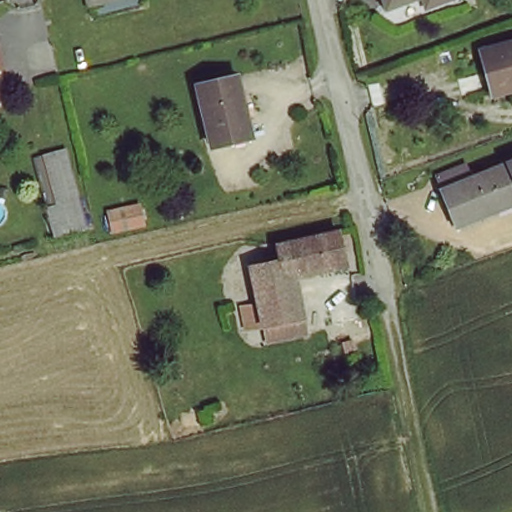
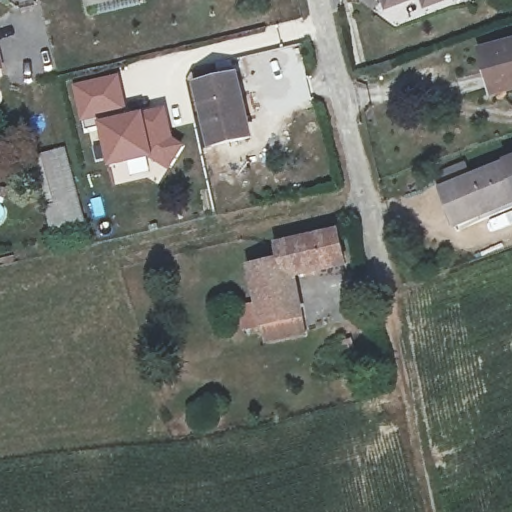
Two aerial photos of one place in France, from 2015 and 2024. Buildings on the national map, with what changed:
unchanged [(97,14),(94,0),(147,0),(147,2),(97,14)]
unchanged [(422,0),(391,12),(386,0),(422,0)]
unchanged [(425,0),(454,0),(429,10),(425,0)]
unchanged [(0,69),(0,39),(8,67),(0,69)]
unchanged [(486,59),(512,52),(512,97),(497,101),(486,59)]
new [(119,71),(128,111),(96,119),(80,122),(70,83),(119,71)]
unchanged [(214,151),(200,91),(236,83),(251,142),(214,151)]
new [(128,111),(129,113),(166,104),(174,136),(185,144),(168,171),(150,159),(107,167),(96,119),(128,111)]
unchanged [(72,167),(81,205),(75,207),(82,237),(56,243),(48,212),(39,175),(36,163),(46,160),(68,155),(72,167)]
unchanged [(438,192),(512,163),(512,214),(454,237),(438,192)]
unchanged [(115,235),(112,218),(142,212),(147,228),(115,235)]
unchanged [(249,269),(282,262),(279,248),(345,235),(352,270),(295,282),(302,328),(262,337),(249,269)]

